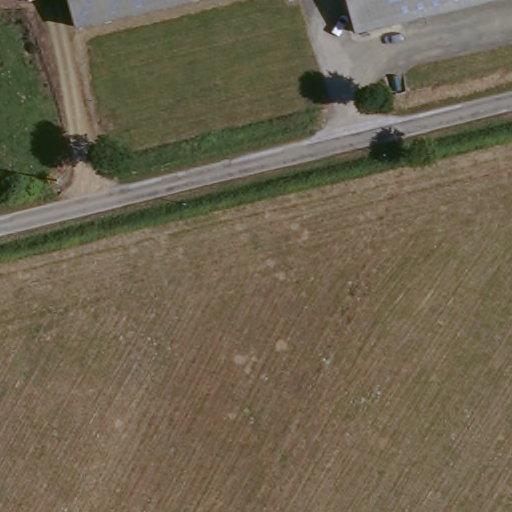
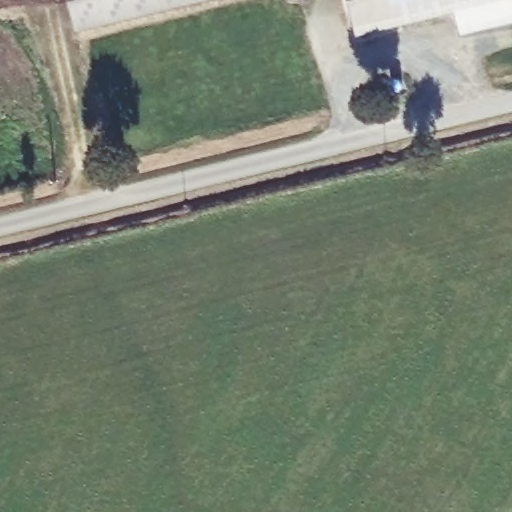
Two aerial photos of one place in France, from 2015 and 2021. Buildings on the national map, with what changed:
unchanged [(72,0),(197,0),(78,26),(72,0)]
unchanged [(487,0),(357,29),(350,0),(487,0)]

